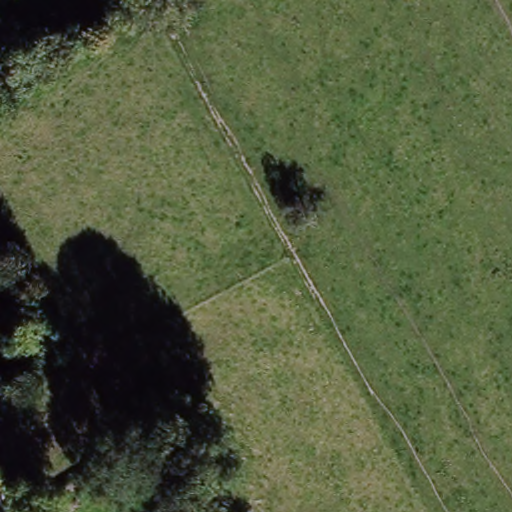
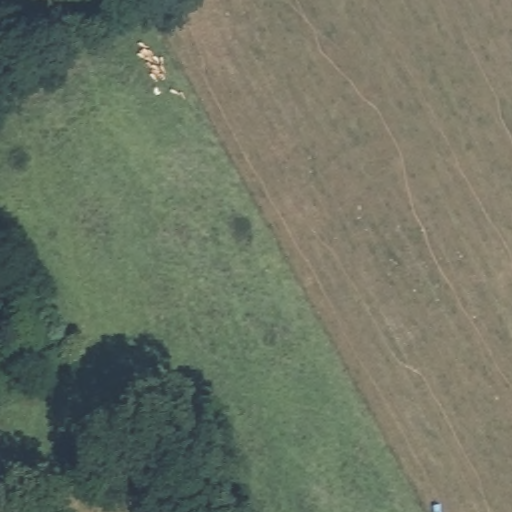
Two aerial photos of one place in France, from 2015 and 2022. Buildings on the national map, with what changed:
unchanged [(0,315),(0,304),(5,313),(0,315)]

